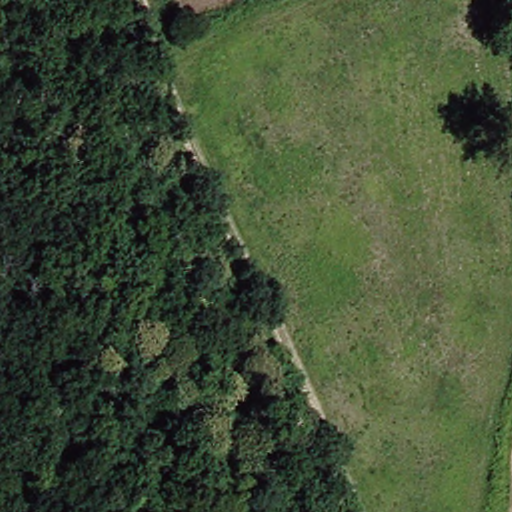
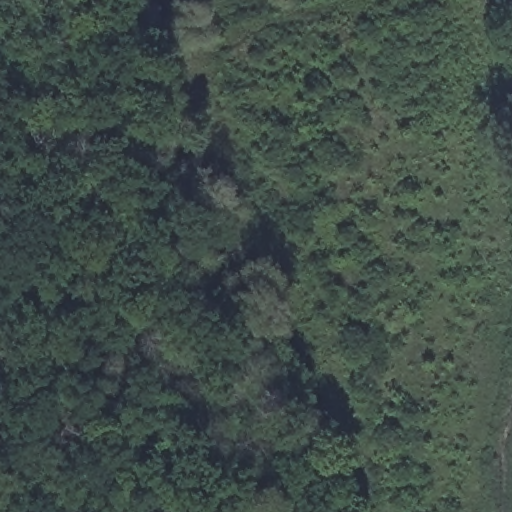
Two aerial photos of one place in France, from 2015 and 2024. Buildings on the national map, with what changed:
[]

